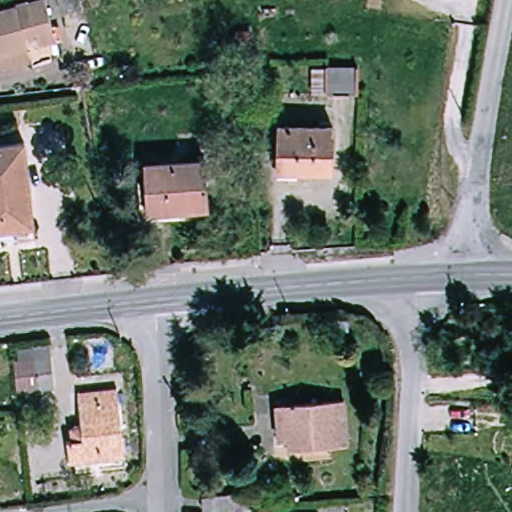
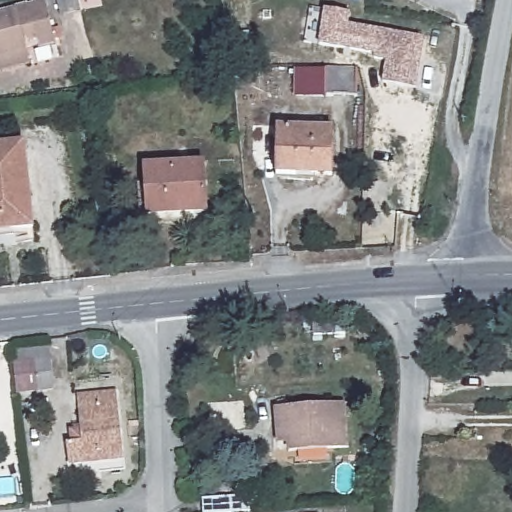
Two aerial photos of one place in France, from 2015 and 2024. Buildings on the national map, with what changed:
unchanged [(59,40),(41,44),(39,34),(27,37),(33,59),(0,67),(0,10),(42,0),(48,0),(59,40)]
unchanged [(62,30),(55,0),(78,0),(83,25),(62,30)]
new [(351,13),(349,24),(425,36),(417,88),(383,83),(386,61),(374,59),(374,55),(319,46),(324,9),(351,13)]
unchanged [(357,100),(324,99),(312,99),(312,72),(325,72),(357,73),(357,96),(357,100)]
unchanged [(331,178),(313,177),(313,183),(288,183),(288,174),(276,173),(277,131),(333,133),(331,178)]
unchanged [(32,231),(0,234),(0,148),(24,146),(32,231)]
unchanged [(208,164),(211,214),(152,218),(149,168),(208,164)]
unchanged [(334,320),(335,332),(316,333),(315,321),(334,320)]
unchanged [(19,394),(15,364),(14,352),(55,347),(56,360),(58,389),(19,394)]
unchanged [(72,446),(77,445),(76,432),(86,431),(83,398),(122,393),(129,460),(73,466),(72,446)]
unchanged [(350,449),(290,454),(290,446),(282,447),(280,432),(279,409),(347,403),(350,449)]
unchanged [(205,512),(204,497),(235,495),(237,512),(205,512)]

